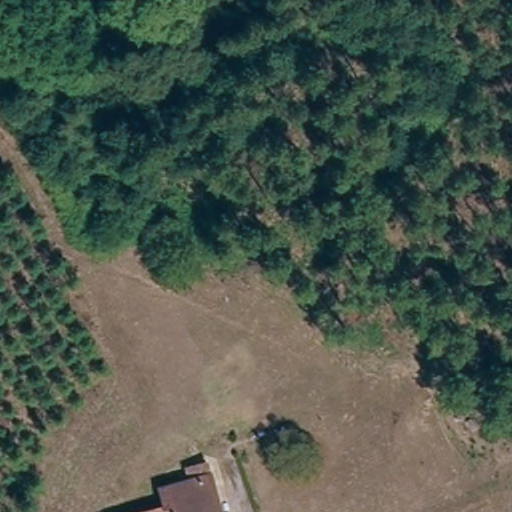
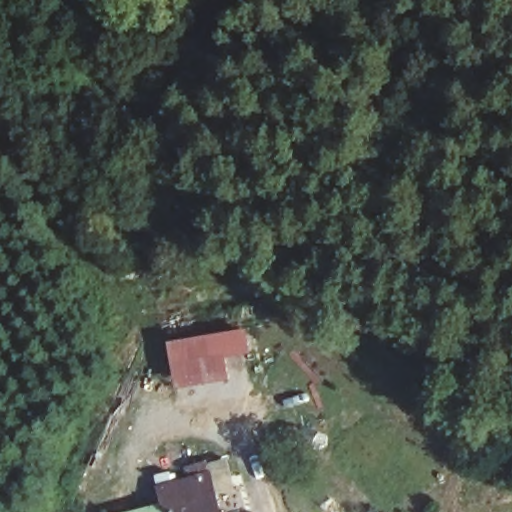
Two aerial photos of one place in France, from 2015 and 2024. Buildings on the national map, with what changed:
new [(247,328),(250,357),(228,361),(230,383),(175,392),(167,342),(247,328)]
unchanged [(167,507),(162,491),(208,477),(219,512),(152,512),(167,507)]

